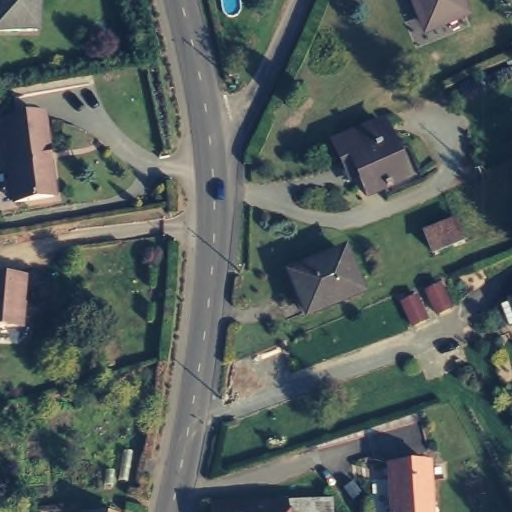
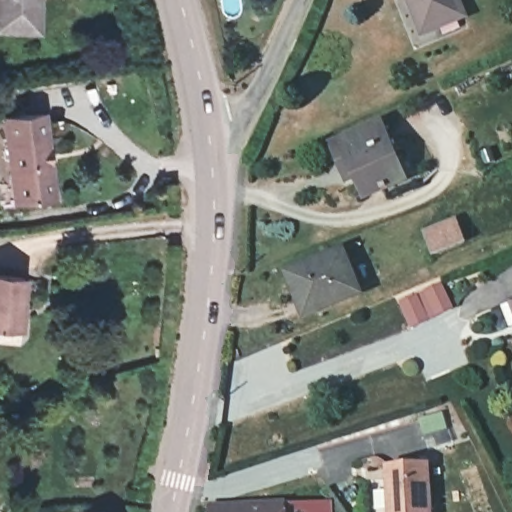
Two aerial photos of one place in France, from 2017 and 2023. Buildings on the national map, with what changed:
unchanged [(0,0),(34,0),(32,30),(0,29),(0,0)]
unchanged [(464,8),(430,24),(420,0),(460,0),(464,8)]
unchanged [(0,133),(0,121),(36,115),(50,199),(12,205),(0,133)]
unchanged [(384,119),(407,177),(366,194),(352,160),(342,164),(334,138),(384,119)]
unchanged [(467,246),(437,258),(427,238),(457,225),(467,246)]
unchanged [(359,287),(305,310),(289,270),(340,249),(359,287)]
unchanged [(0,281),(18,284),(12,335),(0,333),(0,281)]
unchanged [(464,311),(449,318),(437,295),(453,288),(464,311)]
unchanged [(438,323),(425,330),(415,305),(425,299),(438,323)]
unchanged [(510,309),(512,308),(512,314),(510,309)]
unchanged [(387,512),(386,460),(430,460),(431,512),(387,512)]
unchanged [(332,512),(210,512),(210,496),(312,495),(332,494),(332,512)]

